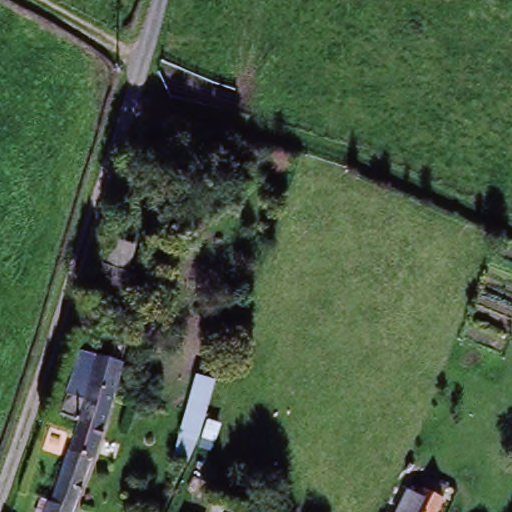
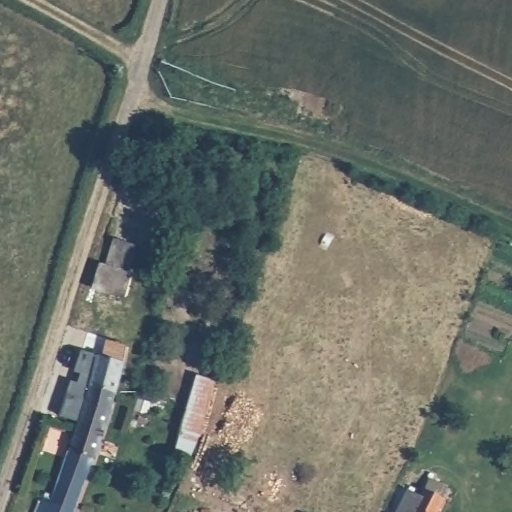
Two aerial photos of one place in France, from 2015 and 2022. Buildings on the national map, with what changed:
unchanged [(105,237),(131,247),(125,264),(101,258),(105,237)]
unchanged [(72,420),(52,413),(58,382),(70,386),(77,371),(64,367),(69,353),(91,359),(114,367),(107,393),(77,512),(47,512),(71,428),(72,420)]
unchanged [(187,458),(171,454),(197,381),(215,388),(187,458)]
unchanged [(449,482),(436,512),(408,512),(409,510),(417,491),(426,472),(449,482)]
unchanged [(408,512),(392,512),(404,484),(417,491),(409,510),(408,512)]

